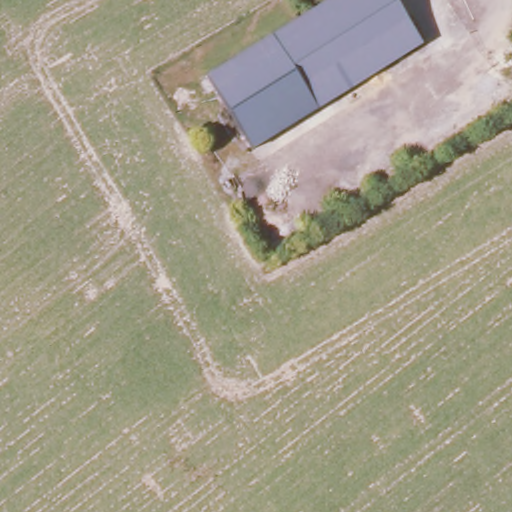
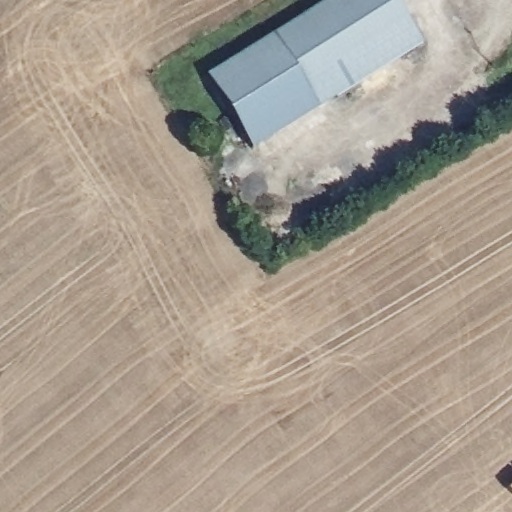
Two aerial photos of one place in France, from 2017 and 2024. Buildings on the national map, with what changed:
unchanged [(333,0),(400,0),(427,42),(256,148),(210,77),(333,0)]

